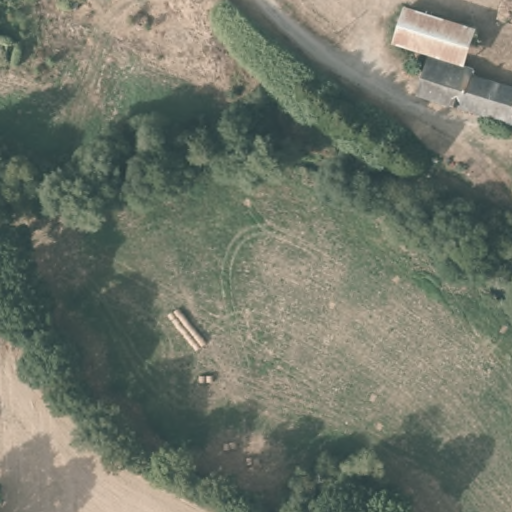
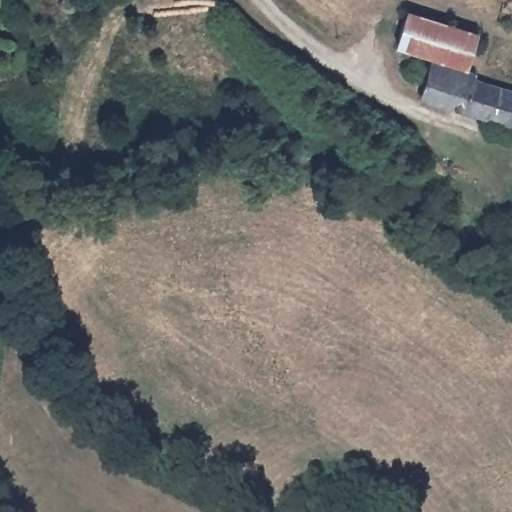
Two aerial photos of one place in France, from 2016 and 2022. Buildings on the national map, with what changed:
unchanged [(80,0),(79,7),(63,5),(64,0),(80,0)]
unchanged [(461,61),(428,52),(390,41),(399,8),(400,5),(470,26),(465,44),(461,61)]
unchanged [(477,66),(476,74),(512,85),(512,125),(416,95),(428,52),(461,61),(477,66)]

